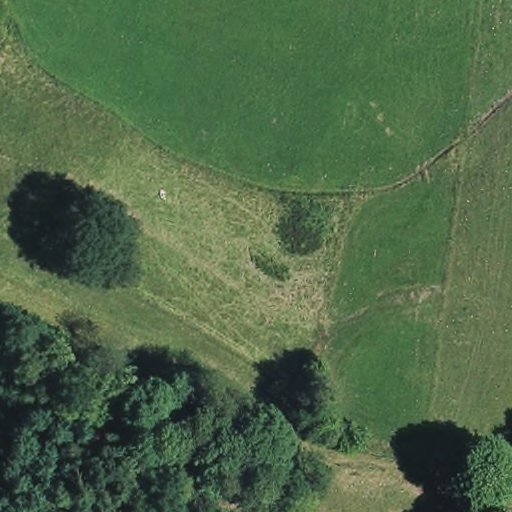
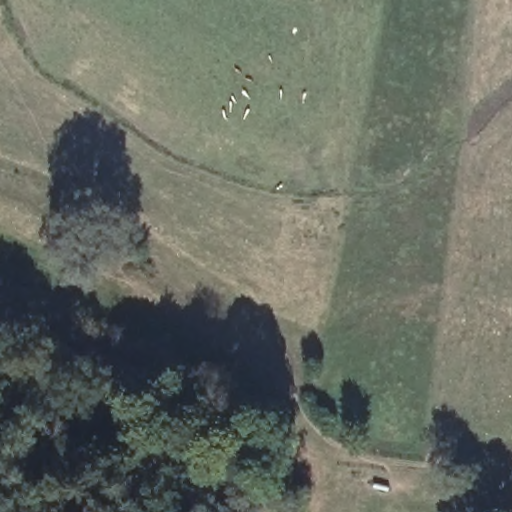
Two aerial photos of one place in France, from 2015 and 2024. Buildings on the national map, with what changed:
unchanged [(156,457),(146,477),(125,468),(132,447),(156,457)]

